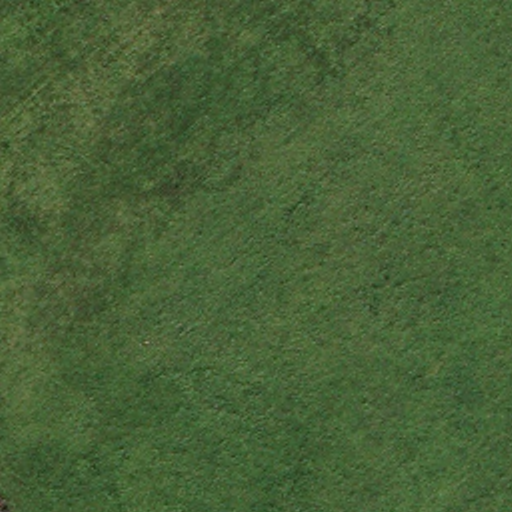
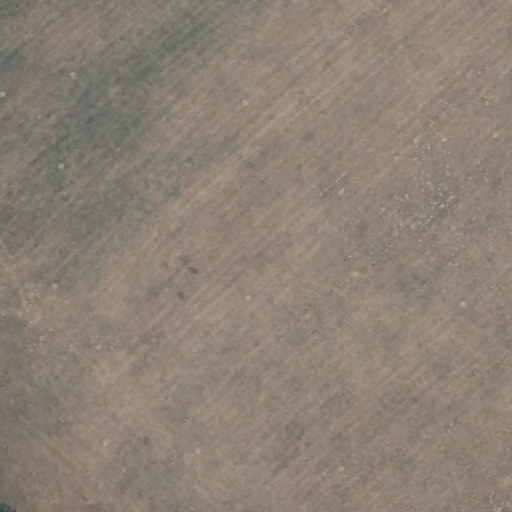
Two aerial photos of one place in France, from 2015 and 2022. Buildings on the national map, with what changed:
[]

